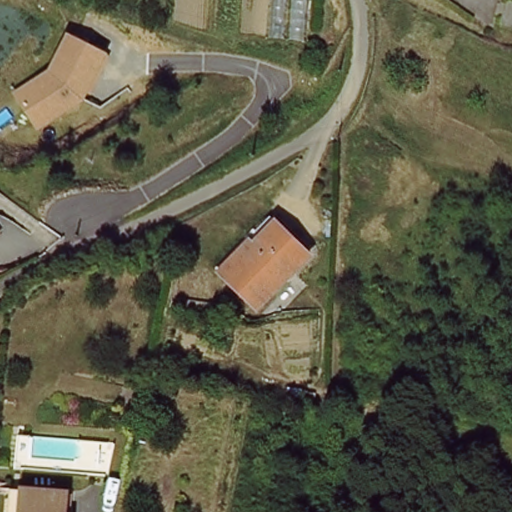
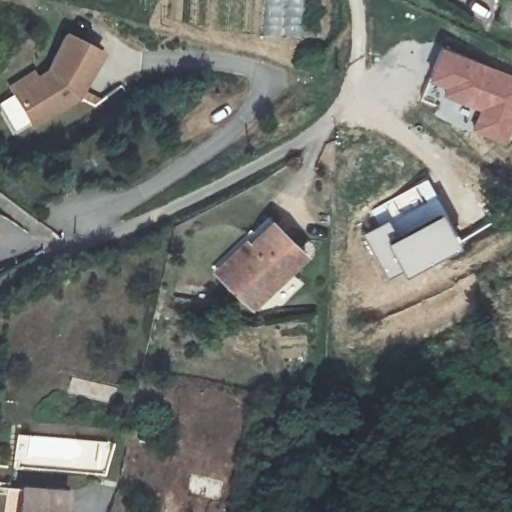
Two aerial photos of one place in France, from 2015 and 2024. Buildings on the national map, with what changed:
unchanged [(512,17),(500,14),(504,0),(512,0),(512,17)]
unchanged [(84,102),(36,131),(14,92),(49,71),(70,34),(109,55),(84,102)]
new [(512,73),(512,133),(508,144),(470,129),(477,108),(440,92),(442,84),(427,78),(442,43),(512,73)]
new [(441,209),(459,243),(405,272),(403,268),(386,276),(362,230),(380,221),(387,236),(441,209)]
unchanged [(257,308),(220,276),(276,220),(311,254),(257,308)]
unchanged [(21,487),(45,488),(67,490),(65,512),(18,512),(19,501),(21,487)]

